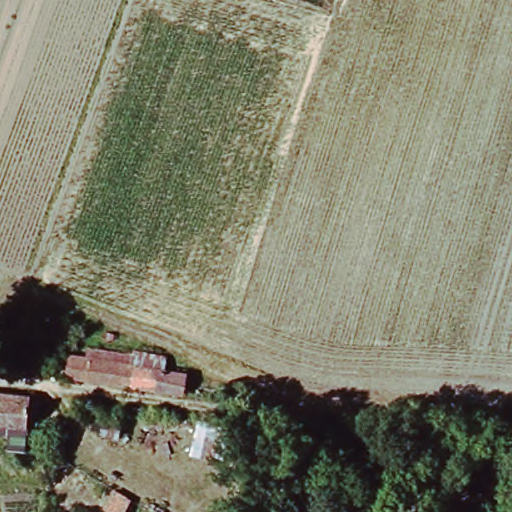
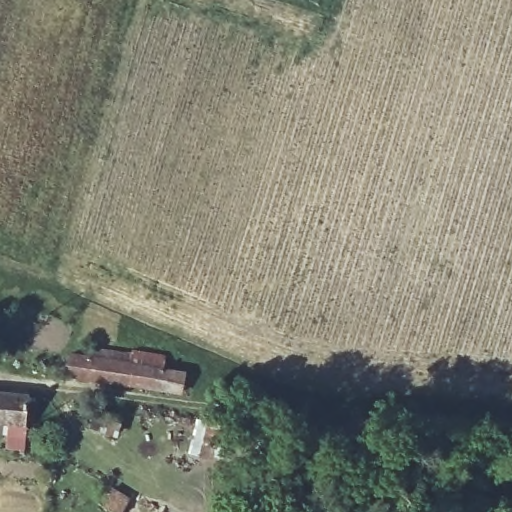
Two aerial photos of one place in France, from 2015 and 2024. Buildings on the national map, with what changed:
unchanged [(187,396),(135,386),(92,377),(71,373),(74,351),(92,354),(96,355),(138,363),(190,374),(187,396)]
unchanged [(33,396),(27,447),(10,444),(11,434),(0,433),(0,391),(33,396)]

